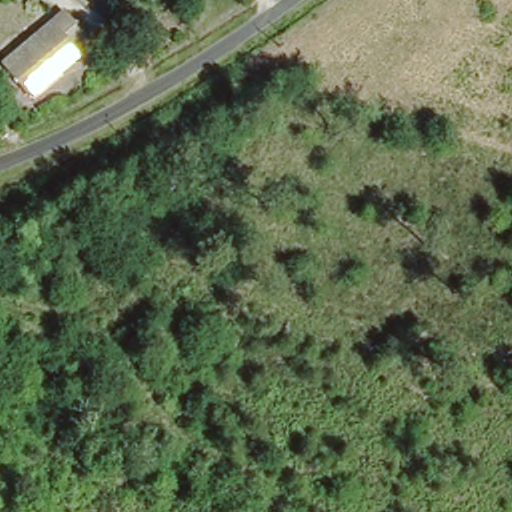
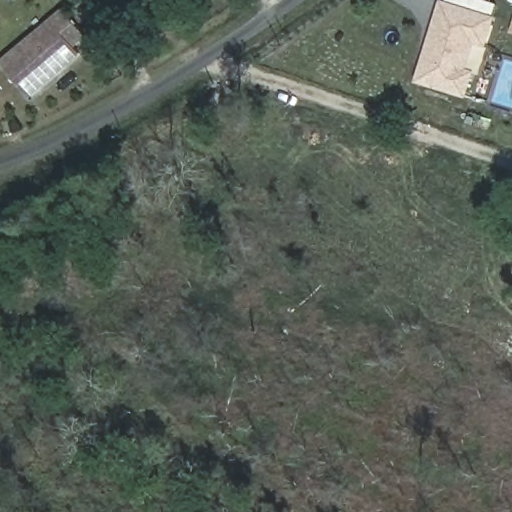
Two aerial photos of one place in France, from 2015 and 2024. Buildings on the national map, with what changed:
new [(475,44),(467,69),(474,71),(465,98),(415,83),(440,0),(495,17),(486,47),(475,44)]
unchanged [(85,36),(74,46),(77,52),(30,97),(2,64),(65,10),(85,36)]

